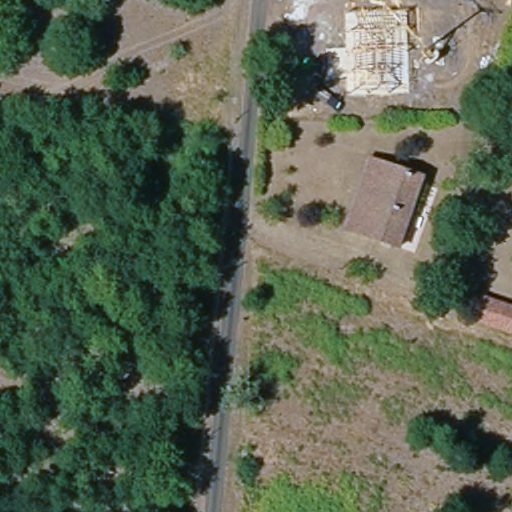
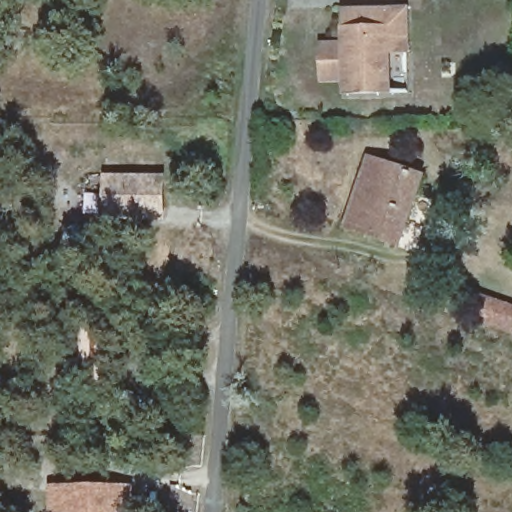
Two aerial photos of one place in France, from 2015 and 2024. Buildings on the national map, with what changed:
new [(344,98),(343,83),(321,84),(320,41),(342,41),(341,10),(409,7),(411,54),(391,55),(392,96),(344,98)]
demolished [(345,81),(345,75),(344,56),(343,21),(404,19),(405,59),(385,60),(387,98),(345,100),(345,81)]
unchanged [(424,176),(401,243),(349,226),(371,158),(424,176)]
new [(103,221),(103,176),(165,176),(164,222),(103,221)]
unchanged [(461,293),(512,311),(512,333),(455,313),(461,293)]
new [(134,486),(134,512),(48,512),(48,487),(134,486)]

